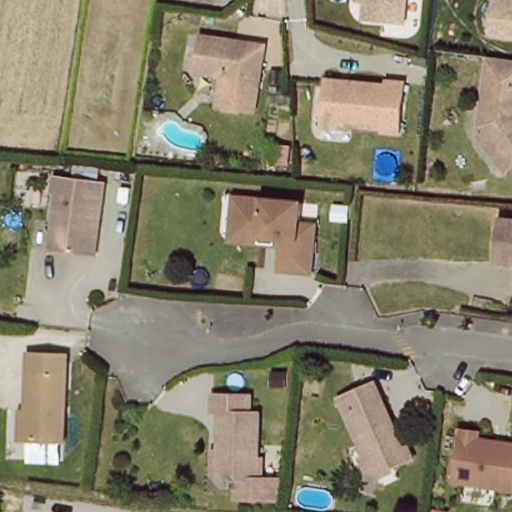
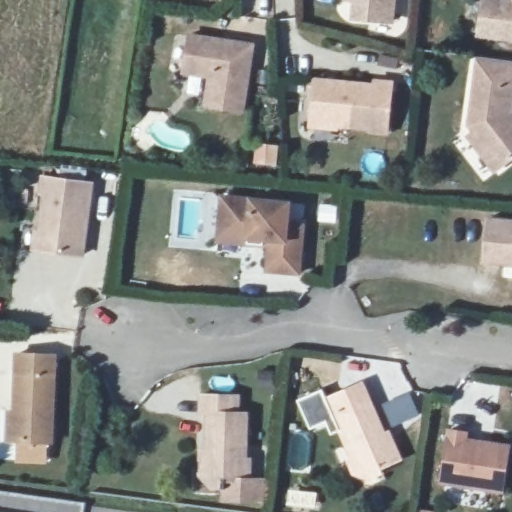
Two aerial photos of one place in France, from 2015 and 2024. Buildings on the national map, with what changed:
unchanged [(395,22),(357,19),(358,1),(348,0),(397,0),(395,22)]
unchanged [(512,0),(512,40),(477,35),(482,0),(495,0),(511,2),(512,0)]
unchanged [(252,45),(242,112),(205,106),(209,77),(183,73),(189,36),(252,45)]
unchanged [(472,131),(467,125),(476,57),(512,62),(512,96),(509,114),(512,118),(508,121),(512,127),(512,157),(499,166),(493,171),(467,136),(472,131)]
unchanged [(313,80),(373,86),(373,82),(390,83),(385,133),(368,132),(368,129),(335,125),(334,128),(309,126),(310,119),(313,80)]
unchanged [(47,195),(43,194),(45,177),(94,184),(84,256),(40,250),(47,195)]
unchanged [(221,229),(224,198),(291,204),(289,225),(305,226),(300,274),(269,271),(271,246),(220,241),(221,229)]
unchanged [(489,224),(512,226),(512,270),(486,267),(489,224)]
unchanged [(54,447),(15,446),(19,360),(57,361),(54,447)]
unchanged [(350,464),(354,462),(329,404),(364,388),(389,446),(394,444),(402,464),(373,477),(371,483),(355,477),(350,464)]
unchanged [(257,501),(221,500),(221,489),(219,489),(208,488),(196,476),(197,452),(204,452),(205,413),(198,413),(198,395),(235,396),(235,413),(243,413),(242,459),(247,459),(246,481),(257,481),(257,501)]
unchanged [(465,434),(464,441),(508,447),(502,492),(441,484),(448,432),(465,434)]

